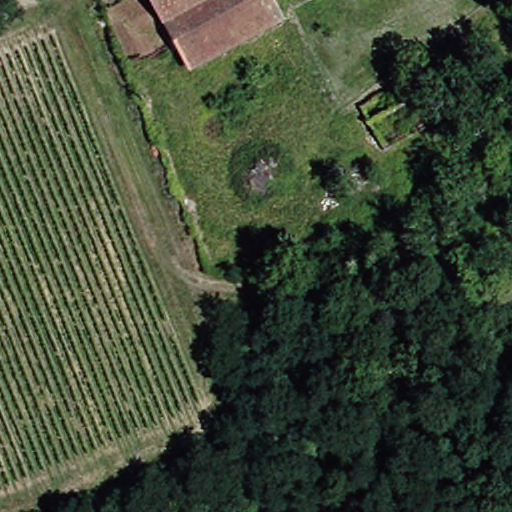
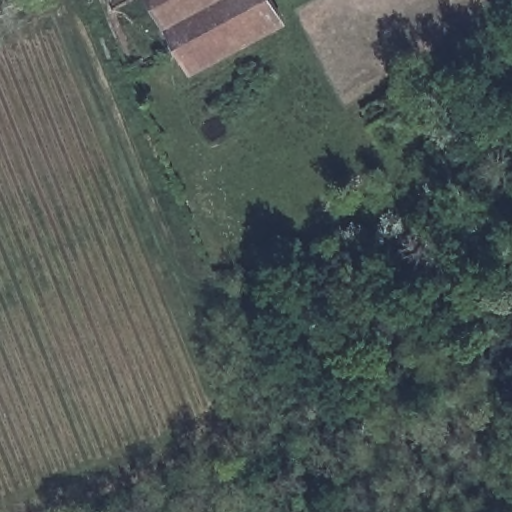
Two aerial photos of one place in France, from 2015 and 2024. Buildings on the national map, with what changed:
unchanged [(190,67),(152,0),(273,0),(283,17),(190,67)]

